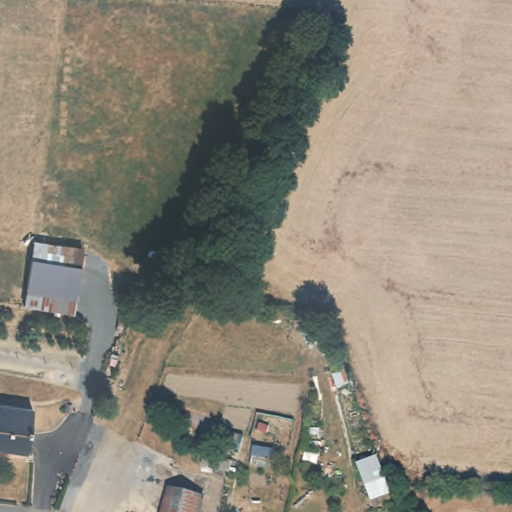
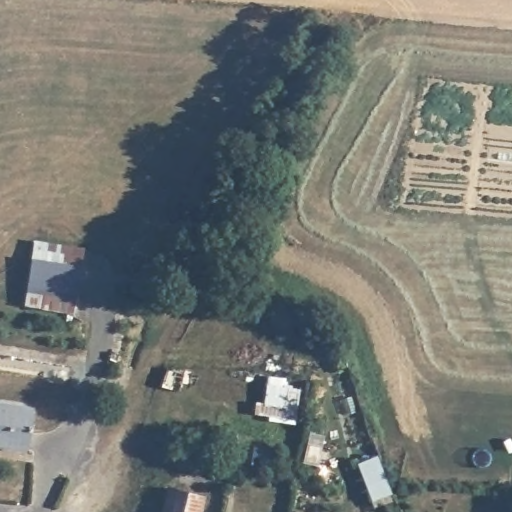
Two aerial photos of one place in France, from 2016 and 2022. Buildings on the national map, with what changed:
unchanged [(52,306),(51,317),(25,312),(30,270),(80,275),(75,307),(52,306)]
unchanged [(31,413),(25,455),(0,452),(0,409),(31,413)]
unchanged [(207,506),(205,512),(168,512),(172,498),(207,506)]

